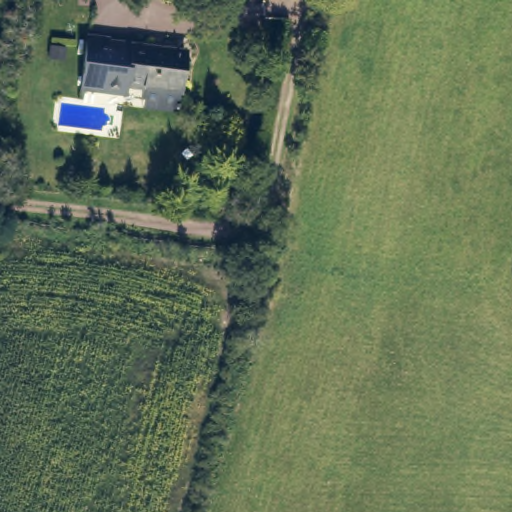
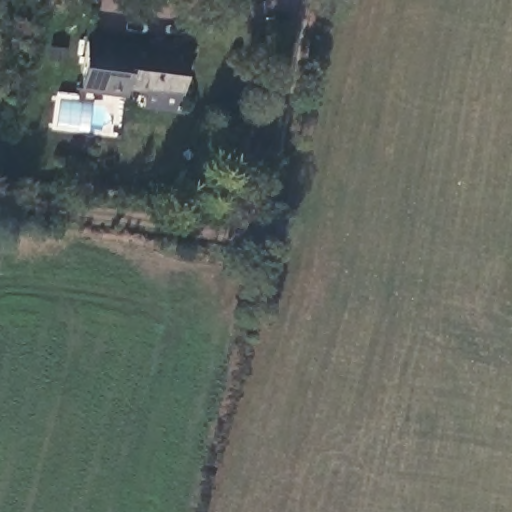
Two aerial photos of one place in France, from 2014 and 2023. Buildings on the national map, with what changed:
unchanged [(149,106),(152,88),(129,84),(127,92),(80,82),(81,76),(90,33),(155,46),(153,51),(190,59),(182,95),(180,112),(149,106)]

